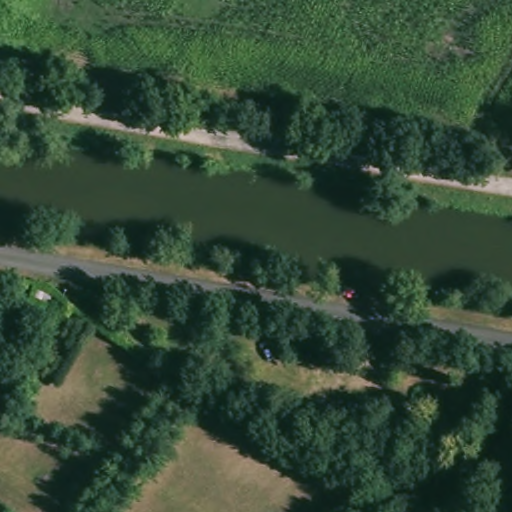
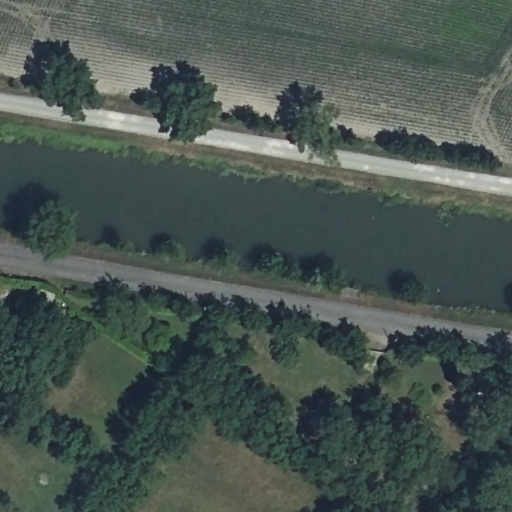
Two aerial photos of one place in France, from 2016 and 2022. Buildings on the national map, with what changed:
unchanged [(315,403),(340,413),(328,446),(302,433),(315,403)]

